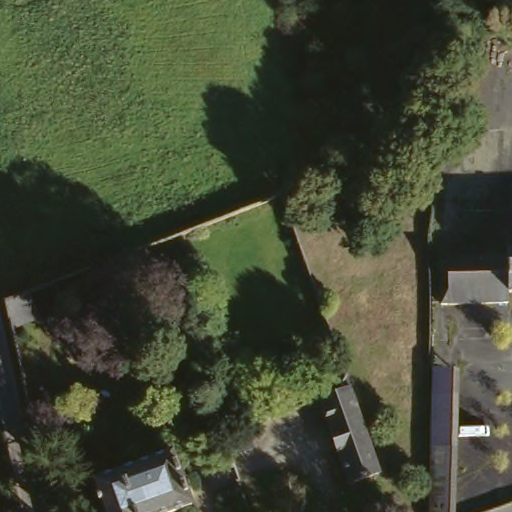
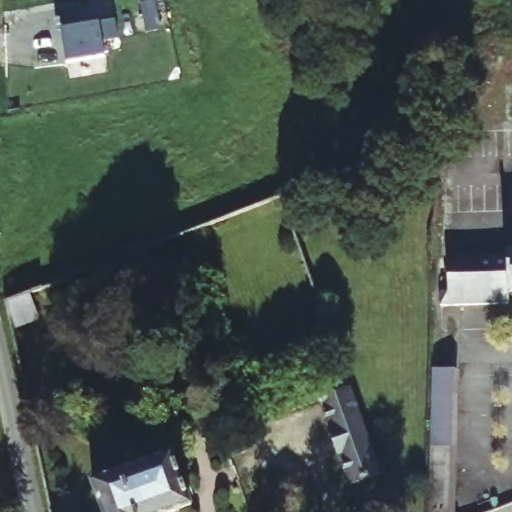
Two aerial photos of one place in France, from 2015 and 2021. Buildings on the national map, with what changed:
new [(120,38),(104,44),(106,58),(65,64),(59,28),(56,19),(76,16),(76,25),(98,21),(99,25),(114,20),(120,38)]
unchanged [(508,287),(508,298),(439,300),(439,286),(448,286),(446,254),(506,253),(506,246),(512,245),(512,287),(508,287)]
unchanged [(4,302),(28,293),(38,319),(11,330),(4,302)]
unchanged [(430,512),(435,367),(463,368),(458,512),(430,512)]
unchanged [(384,483),(353,494),(324,409),(355,398),(384,483)]
unchanged [(104,512),(93,482),(173,453),(193,506),(174,512),(104,512)]

